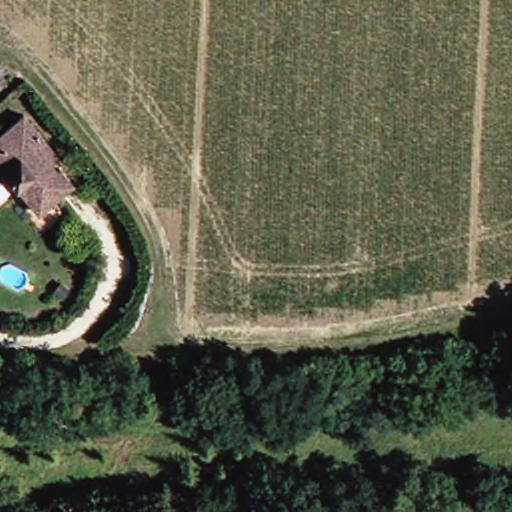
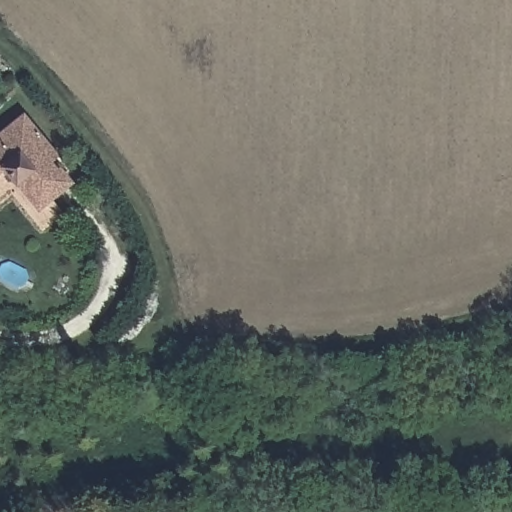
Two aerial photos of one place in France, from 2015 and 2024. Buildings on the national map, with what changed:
unchanged [(55,162),(63,172),(66,169),(77,184),(44,211),(10,170),(0,178),(0,140),(29,116),(62,156),(55,162)]

